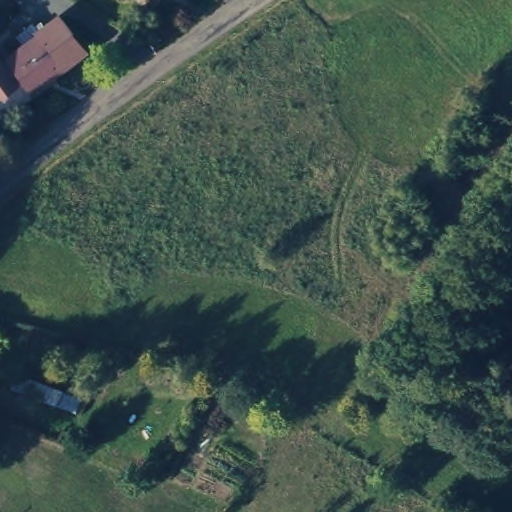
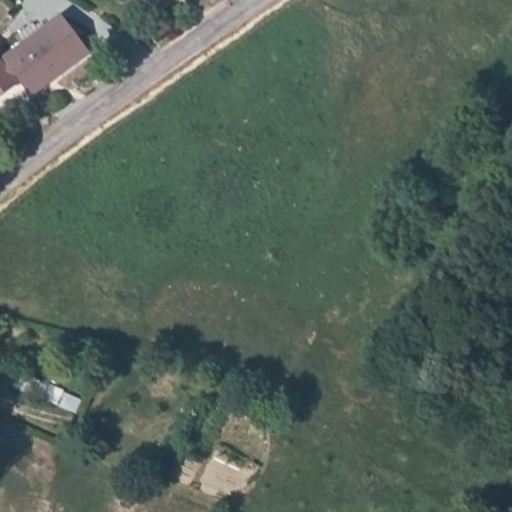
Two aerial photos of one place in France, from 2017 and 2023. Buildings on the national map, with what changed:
unchanged [(28,91),(18,77),(12,81),(13,83),(0,94),(0,65),(6,61),(4,59),(60,17),(86,52),(53,77),(50,74),(28,91)]
unchanged [(67,391),(63,402),(61,405),(18,387),(23,373),(67,391)]

